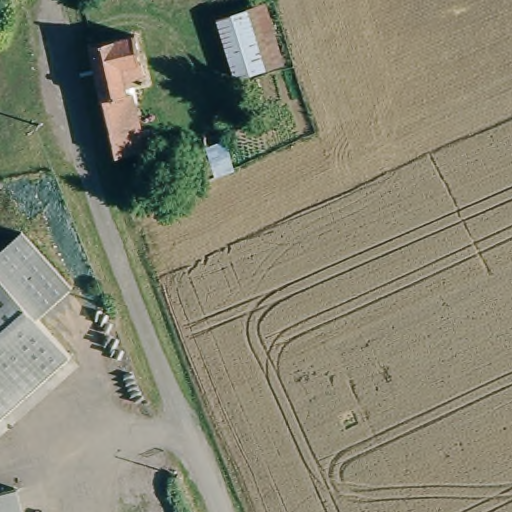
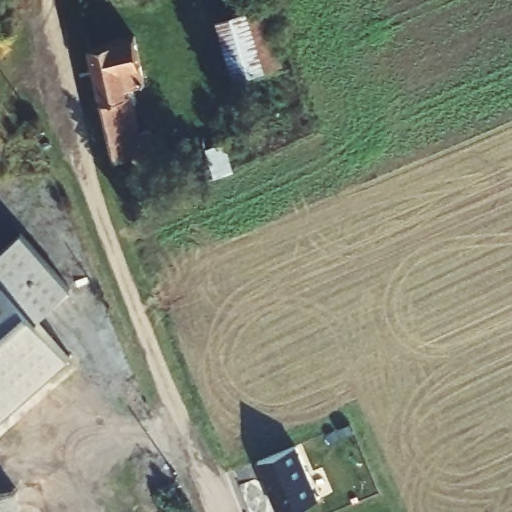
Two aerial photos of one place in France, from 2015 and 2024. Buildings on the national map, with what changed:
unchanged [(225,81),(208,24),(255,11),(273,67),(225,81)]
unchanged [(135,40),(145,87),(127,91),(129,98),(125,99),(133,137),(148,134),(153,154),(114,162),(90,49),(135,40)]
unchanged [(189,187),(180,154),(199,147),(207,145),(223,141),(226,149),(232,169),(189,187)]
unchanged [(0,416),(0,252),(26,229),(75,284),(47,310),(76,347),(0,416)]
new [(287,512),(278,512),(257,462),(297,445),(319,499),(287,512)]
unchanged [(0,512),(0,493),(21,488),(26,512),(0,512)]

